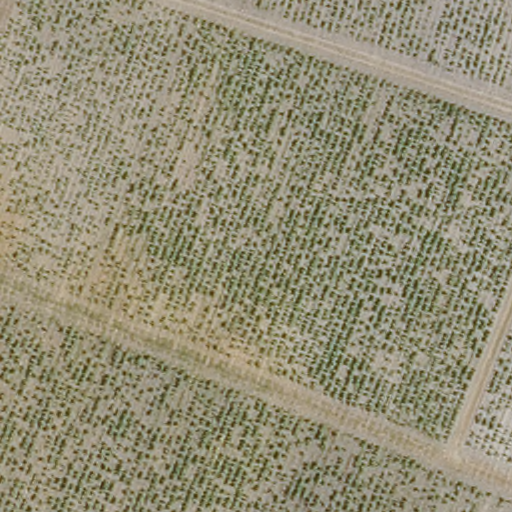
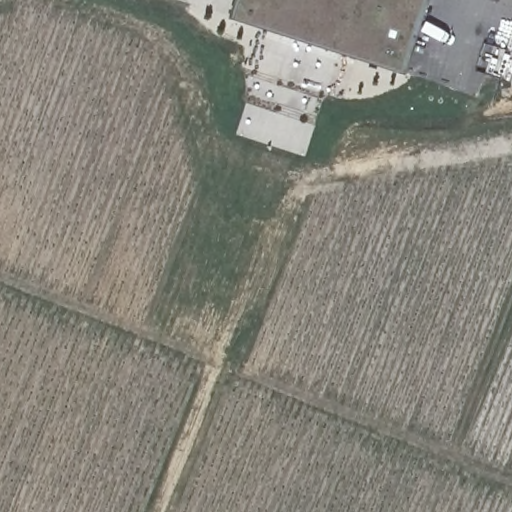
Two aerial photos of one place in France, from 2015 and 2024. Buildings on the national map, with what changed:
new [(406,72),(231,17),(236,0),(428,0),(406,72)]

